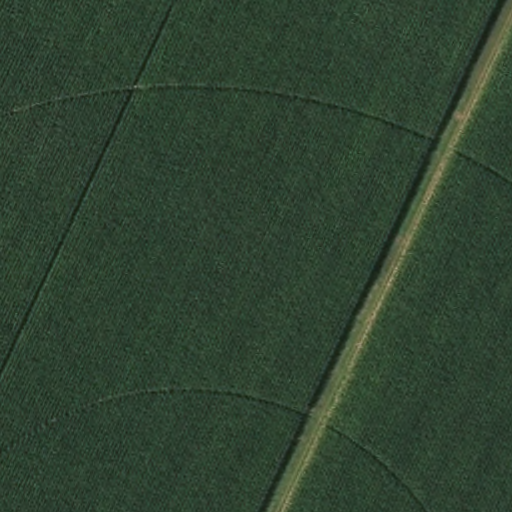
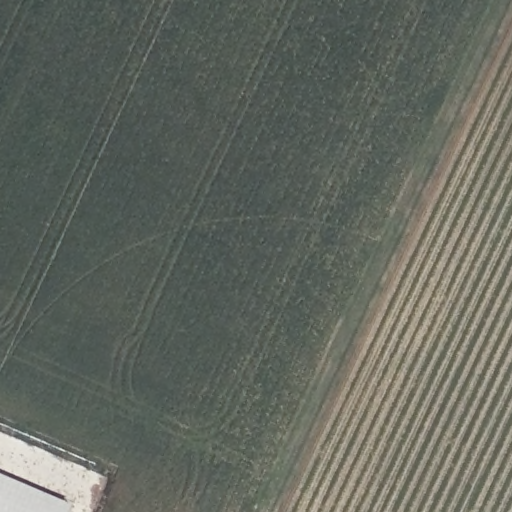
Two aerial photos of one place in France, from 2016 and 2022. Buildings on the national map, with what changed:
new [(70,512),(0,512),(0,474),(74,504),(70,512)]

